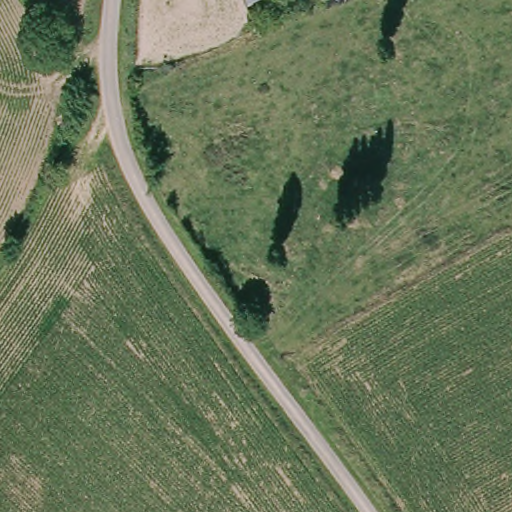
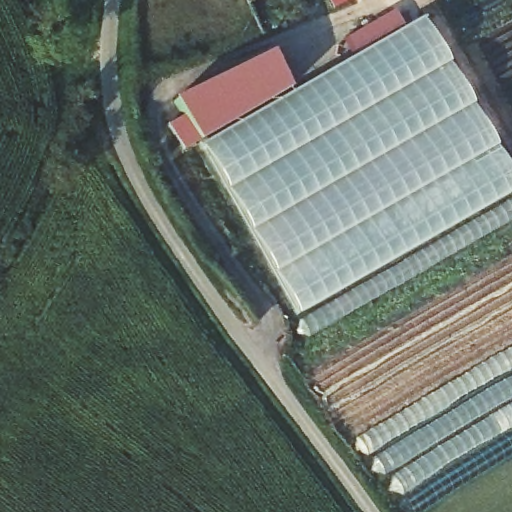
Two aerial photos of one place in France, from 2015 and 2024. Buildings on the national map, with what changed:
new [(245,0),(259,0),(248,5),(245,0)]
new [(394,28),(182,124),(174,107),(387,13),(394,28)]
new [(512,177),(512,221),(301,338),(292,322),(298,316),(198,147),(423,19),(512,177)]
new [(393,498),(357,438),(512,349),(512,429),(393,498)]

